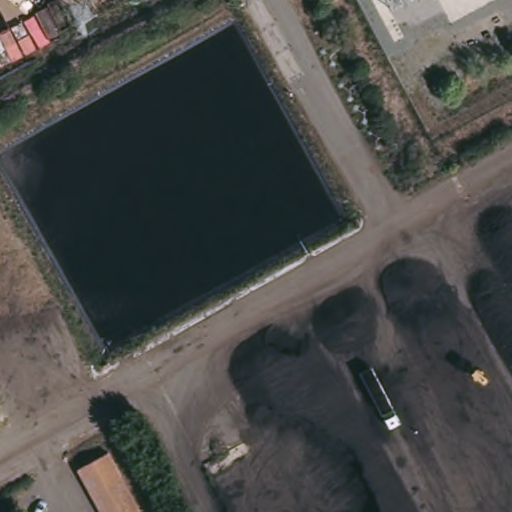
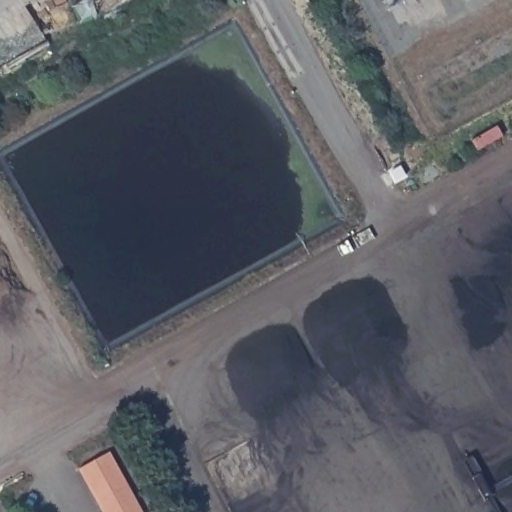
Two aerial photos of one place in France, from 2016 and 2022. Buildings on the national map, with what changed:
unchanged [(81,466),(113,452),(123,475),(139,512),(101,512),(91,490),(81,466)]

